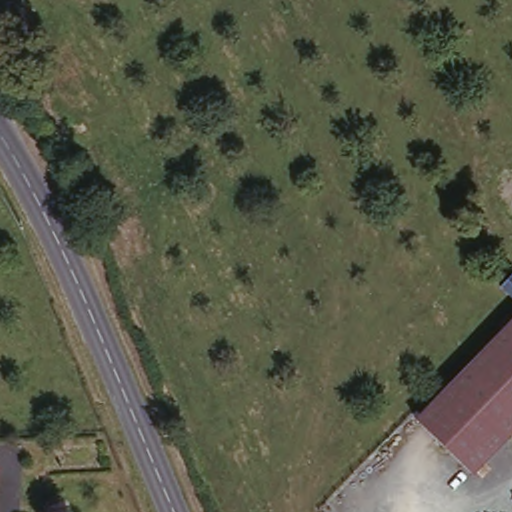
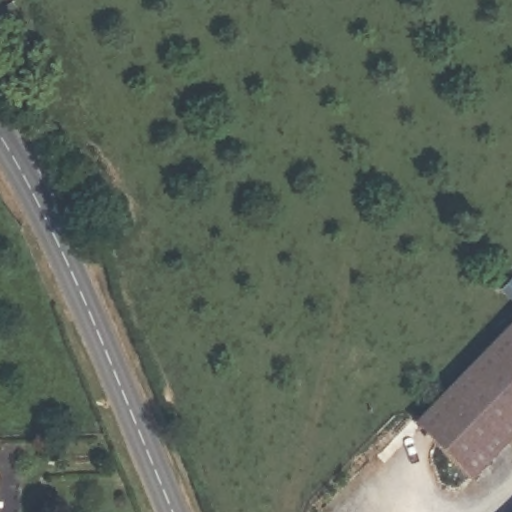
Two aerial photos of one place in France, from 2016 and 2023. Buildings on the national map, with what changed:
unchanged [(512,285),(512,306),(502,293),(512,285)]
unchanged [(418,428),(512,329),(512,440),(473,480),(418,428)]

